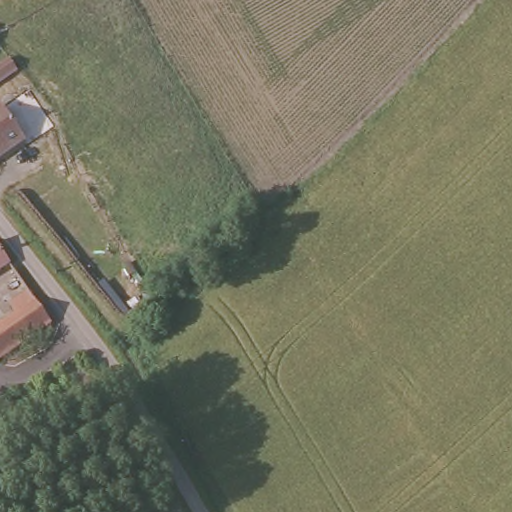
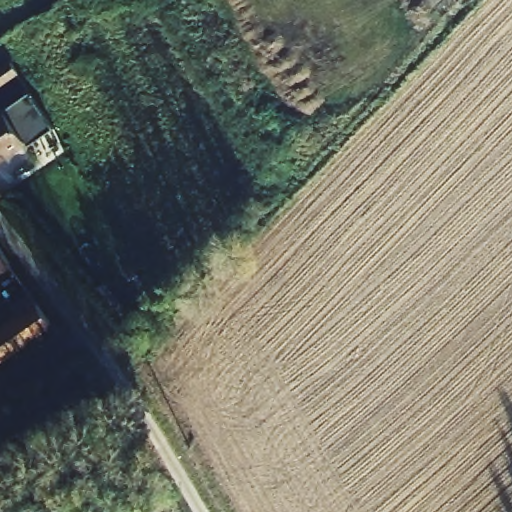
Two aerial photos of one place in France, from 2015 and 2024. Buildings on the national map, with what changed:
unchanged [(24,141),(0,159),(0,109),(24,141)]
unchanged [(0,266),(0,244),(10,258),(0,266)]
unchanged [(0,356),(0,316),(9,310),(1,298),(22,283),(49,320),(0,356)]

